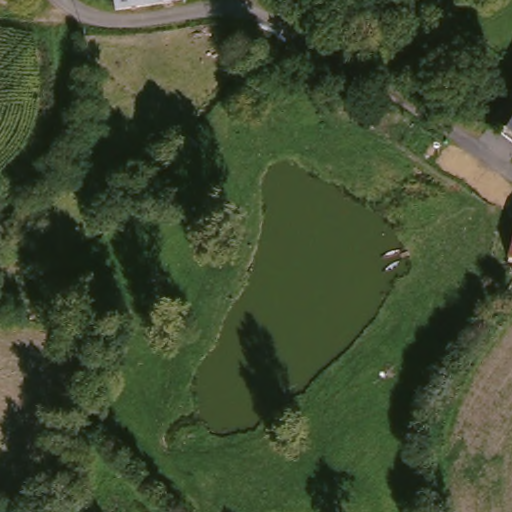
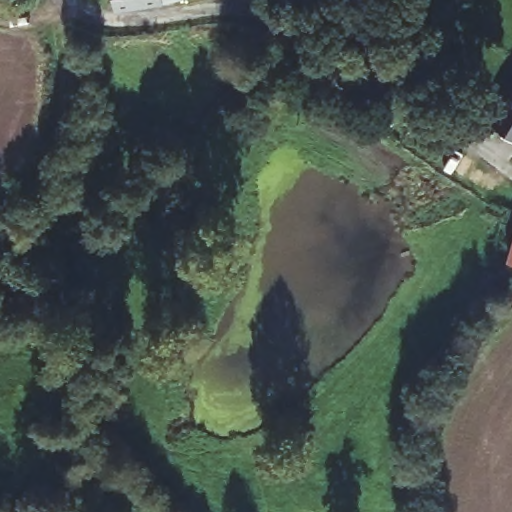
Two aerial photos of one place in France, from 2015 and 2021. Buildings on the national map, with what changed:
unchanged [(112,0),(165,0),(113,6),(112,0)]
unchanged [(487,117),(512,68),(512,141),(484,124),(487,117)]

